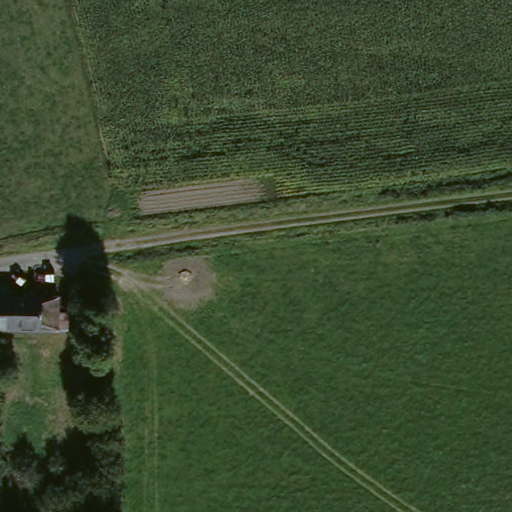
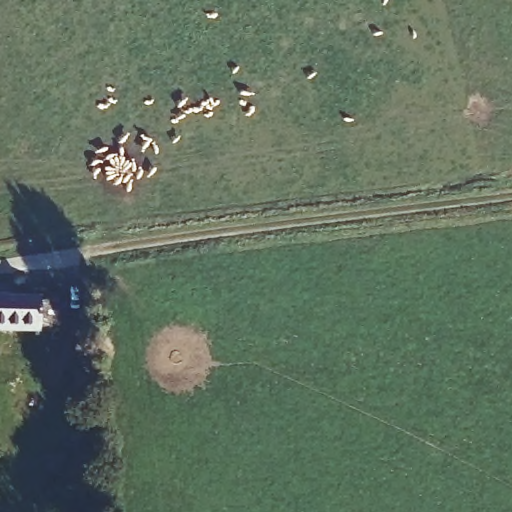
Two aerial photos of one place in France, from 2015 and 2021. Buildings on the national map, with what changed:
unchanged [(9,331),(0,331),(0,298),(11,298),(9,331)]
unchanged [(72,298),(70,330),(9,331),(11,298),(72,298)]

